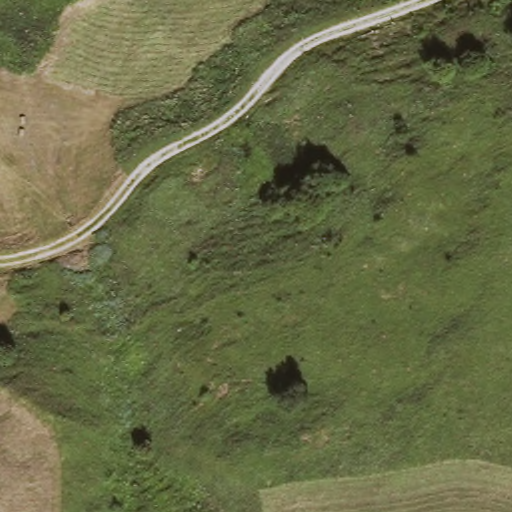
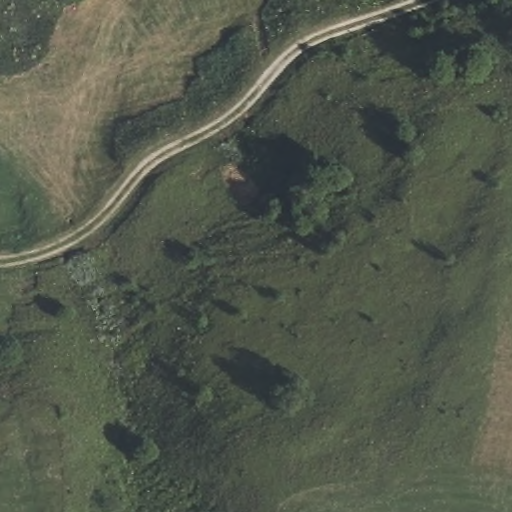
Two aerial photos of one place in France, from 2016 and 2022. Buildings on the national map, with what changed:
[]

